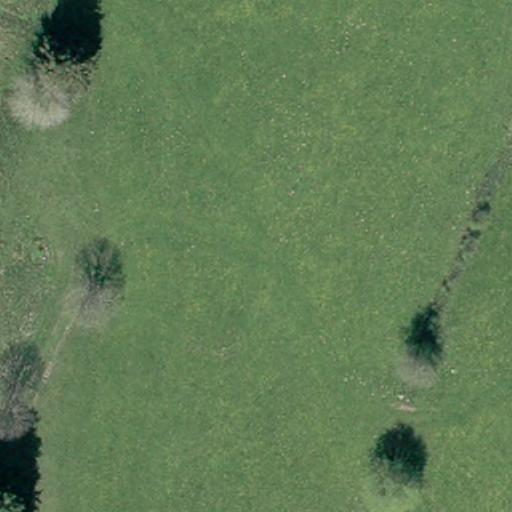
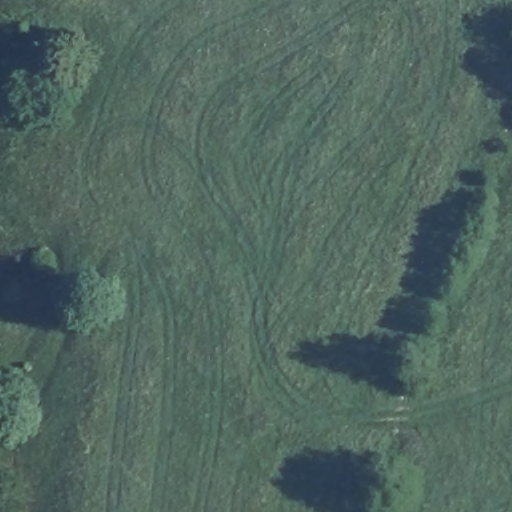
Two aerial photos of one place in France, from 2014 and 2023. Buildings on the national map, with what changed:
[]

